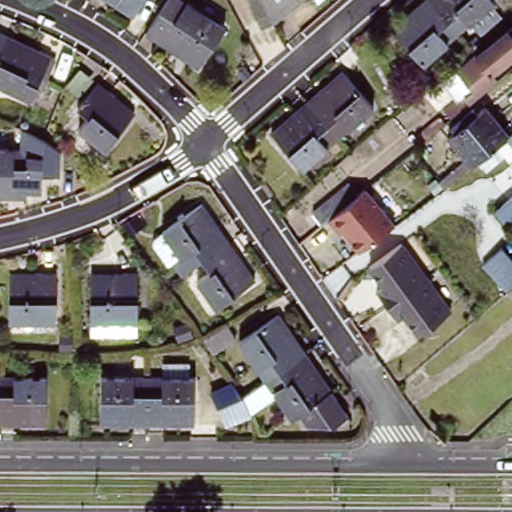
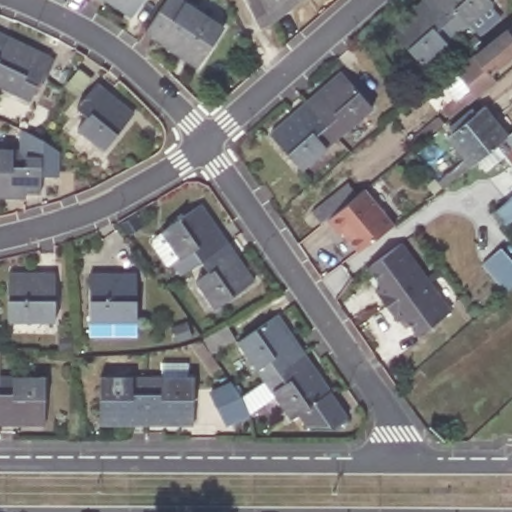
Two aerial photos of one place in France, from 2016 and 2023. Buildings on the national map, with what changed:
unchanged [(135,8),(122,0),(139,0),(135,8)]
unchanged [(227,29),(202,64),(182,51),(179,55),(145,31),(166,0),(183,0),(227,29)]
unchanged [(245,0),(302,0),(272,25),(271,25),(260,30),(245,0)]
unchanged [(424,0),(482,0),(488,7),(419,66),(392,34),(410,18),(407,14),(424,0)]
unchanged [(512,30),(512,56),(484,77),(491,87),(443,126),(437,118),(448,109),(432,88),(470,59),(472,61),(512,30)]
unchanged [(55,59),(62,61),(51,83),(45,80),(35,101),(0,85),(0,37),(12,43),(35,53),(37,50),(55,59)]
unchanged [(482,49),(472,57),(461,45),(471,37),(482,49)]
unchanged [(318,88),(320,91),(340,74),(367,106),(299,166),(272,133),(289,118),(286,114),(318,88)]
unchanged [(110,97),(108,101),(127,115),(102,148),(77,130),(86,117),(75,109),(94,85),(110,97)]
unchanged [(487,101),(509,130),(491,144),(474,158),(450,129),(487,101)]
unchanged [(491,144),(509,130),(512,127),(512,170),(491,144)]
unchanged [(25,156),(40,157),(40,193),(25,193),(25,197),(7,197),(7,193),(0,193),(0,149),(25,149),(25,156)]
unchanged [(310,213),(347,184),(356,195),(320,224),(310,213)]
unchanged [(356,195),(365,188),(394,222),(359,250),(341,228),(337,230),(328,218),(356,195)]
unchanged [(490,213),(499,207),(500,206),(512,196),(512,219),(510,220),(501,227),(490,213)]
unchanged [(218,221),(242,256),(239,258),(254,279),(219,303),(200,277),(213,269),(205,257),(183,272),(175,260),(172,262),(157,241),(158,235),(167,229),(201,204),(215,224),(218,221)]
unchanged [(400,243),(450,310),(419,334),(404,315),(397,320),(375,292),(382,286),(368,267),(400,243)]
unchanged [(497,247),(512,264),(512,285),(506,291),(478,264),(497,247)]
unchanged [(32,275),(32,271),(52,272),(51,319),(7,319),(7,275),(32,275)]
unchanged [(117,280),(117,277),(139,277),(139,323),(93,323),(93,280),(117,280)]
unchanged [(289,330),(302,350),(307,347),(362,425),(349,435),(322,435),(315,423),(306,429),(289,403),(264,419),(272,440),(250,440),(245,424),(237,410),(256,406),(292,382),(284,371),(271,379),(254,354),(289,330)]
unchanged [(240,339),(249,351),(228,364),(220,352),(240,339)]
unchanged [(192,376),(192,419),(167,419),(167,423),(128,423),(127,420),(103,419),(103,375),(192,376)]
unchanged [(45,419),(22,419),(20,423),(0,423),(0,376),(46,376),(45,419)]

